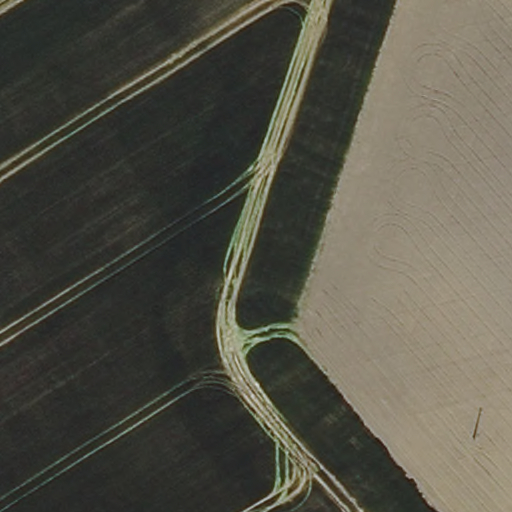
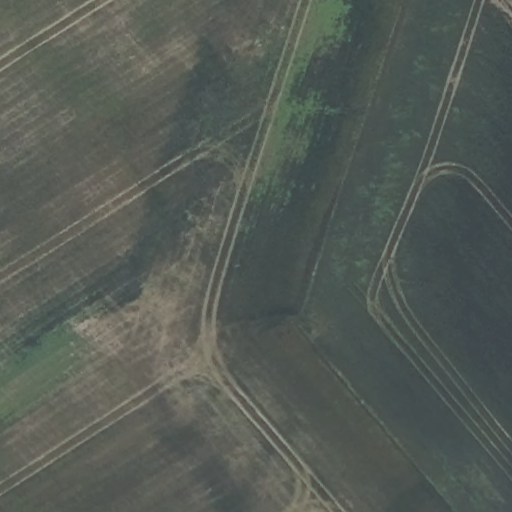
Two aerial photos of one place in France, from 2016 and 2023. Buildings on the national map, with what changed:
[]

